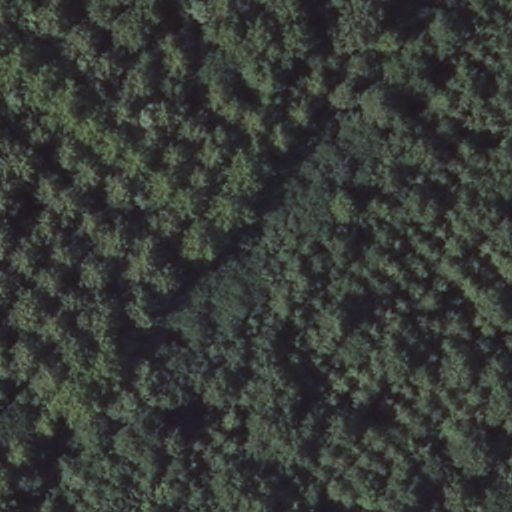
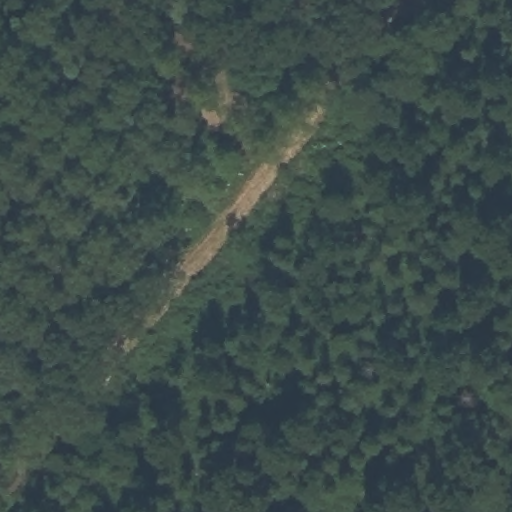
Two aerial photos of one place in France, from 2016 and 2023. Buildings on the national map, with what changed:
[]

